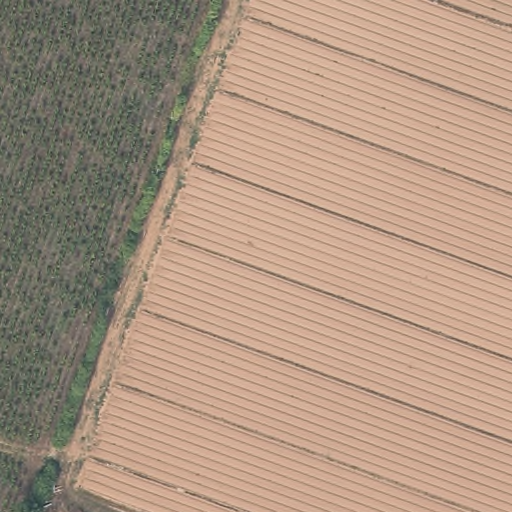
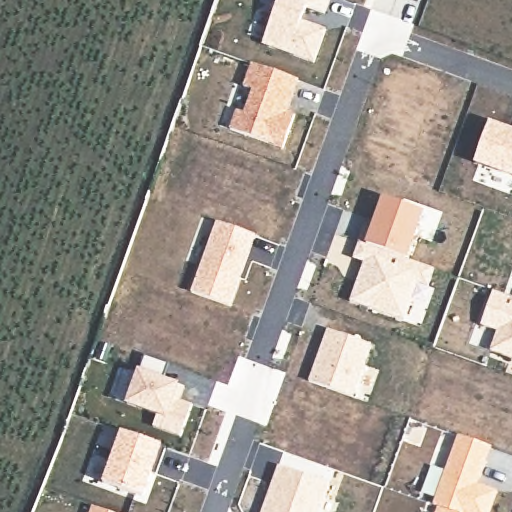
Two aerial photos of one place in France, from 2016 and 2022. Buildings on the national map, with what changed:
new [(269,22),(278,0),(329,0),(325,14),(306,7),(302,20),(326,29),(314,64),(261,45),(269,22)]
new [(235,109),(243,112),(251,90),(242,86),(251,62),(299,80),(287,112),(295,115),(283,150),(228,130),(235,109)]
new [(512,128),(512,177),(474,165),(488,120),(512,128)]
new [(362,263),(353,260),(359,240),(365,242),(381,196),(423,210),(406,260),(436,270),(430,287),(417,283),(404,322),(349,302),(362,263)]
new [(215,220),(256,235),(231,308),(190,291),(215,220)]
new [(480,325),(492,290),(512,296),(512,359),(490,351),(497,330),(480,325)]
new [(373,344),(353,398),(308,381),(327,328),(373,344)]
new [(137,368),(141,369),(145,355),(168,363),(163,377),(179,383),(184,387),(180,400),(193,404),(182,437),(152,427),(157,417),(125,405),(137,368)]
new [(162,445),(167,447),(158,475),(151,472),(143,497),(102,483),(120,430),(162,445)]
new [(491,446),(478,483),(497,489),(489,512),(455,512),(433,505),(457,434),(491,446)]
new [(331,483),(322,512),(261,512),(278,465),(331,483)]
new [(111,512),(90,512),(92,505),(111,512)]

